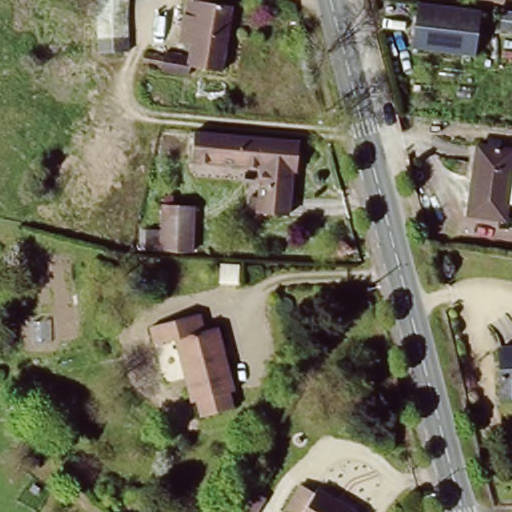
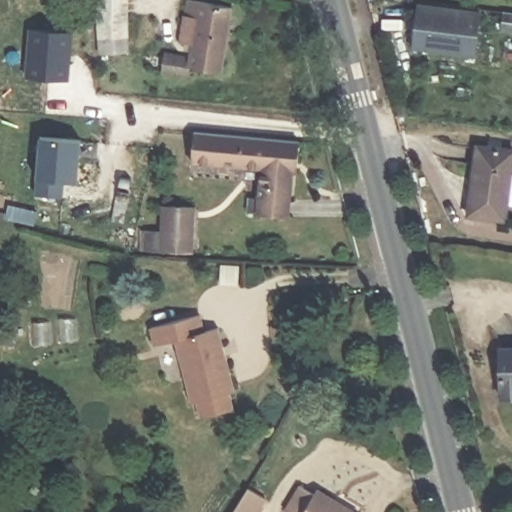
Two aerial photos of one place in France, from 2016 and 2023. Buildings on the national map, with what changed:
unchanged [(95,0),(128,0),(128,52),(96,52),(96,15),(83,15),(83,1),(95,1),(95,0)]
unchanged [(146,53),(171,56),(171,55),(192,57),(196,25),(191,24),(193,19),(187,18),(189,0),(201,0),(237,5),(224,71),(198,67),(196,74),(164,70),(165,65),(151,64),(151,69),(143,67),(146,53)]
unchanged [(486,9),(481,51),(414,43),(419,0),(486,9)]
unchanged [(494,11),(512,13),(512,31),(492,28),(494,11)]
new [(25,77),(28,29),(74,31),(70,80),(25,77)]
unchanged [(302,135),(299,164),(294,164),(291,207),(263,205),(266,163),(193,158),(194,127),(302,135)]
new [(78,182),(68,182),(65,197),(36,195),(38,179),(36,179),(40,136),(81,140),(78,182)]
unchanged [(512,172),(505,220),(464,214),(473,149),(512,155),(512,172)]
unchanged [(164,200),(193,202),(189,250),(161,250),(164,200)]
unchanged [(202,315),(207,335),(223,331),(238,392),(191,404),(176,345),(158,350),(153,328),(202,315)]
unchanged [(503,346),(512,346),(512,393),(504,393),(503,346)]
unchanged [(302,488),(313,495),(316,490),(355,512),(291,512),(289,511),(302,488)]
unchanged [(251,510),(249,512),(227,512),(234,500),(251,510)]

